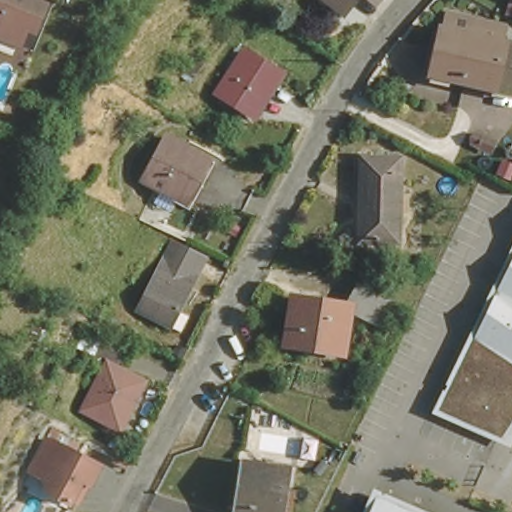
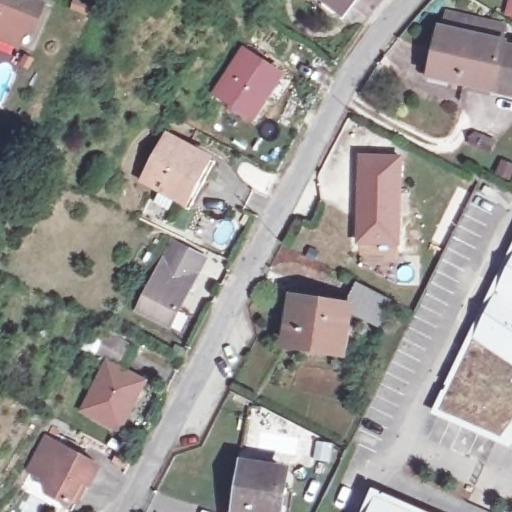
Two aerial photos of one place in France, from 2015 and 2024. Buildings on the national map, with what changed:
unchanged [(52,11),(42,37),(33,35),(26,51),(2,41),(8,25),(0,22),(0,0),(31,0),(30,2),(52,11)]
unchanged [(339,0),(363,0),(357,11),(339,0)]
unchanged [(446,34),(450,17),(476,22),(505,29),(500,46),(512,48),(512,94),(478,87),(430,77),(440,32),(446,34)]
unchanged [(185,49),(192,55),(175,75),(168,70),(185,49)]
unchanged [(255,121),(222,102),(215,97),(238,56),(247,60),(278,78),(255,121)]
unchanged [(163,131),(206,155),(210,157),(187,199),(175,192),(140,172),(163,131)]
unchanged [(494,148),(489,160),(470,150),(475,140),(494,148)]
unchanged [(364,157),(400,157),(397,242),(362,242),(364,157)]
unchanged [(433,409),(512,249),(512,438),(509,443),(433,409)]
unchanged [(137,312),(155,278),(165,259),(197,276),(188,296),(170,329),(137,312)]
unchanged [(296,298),(345,307),(357,282),(390,298),(376,322),(350,309),(343,349),(289,341),(296,298)]
unchanged [(117,339),(138,350),(126,373),(153,387),(129,435),(92,416),(113,370),(97,361),(105,344),(113,348),(117,339)]
unchanged [(100,465),(90,482),(82,477),(70,500),(48,487),(44,473),(31,467),(39,452),(49,435),(100,465)]
unchanged [(245,465),(285,471),(279,512),(238,512),(245,465)]
unchanged [(431,512),(362,512),(372,486),(431,512)]

